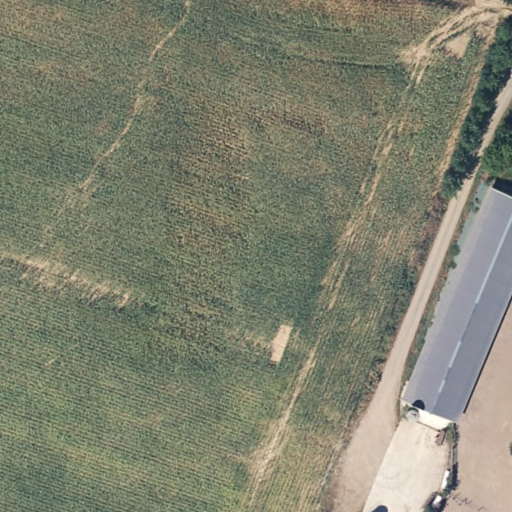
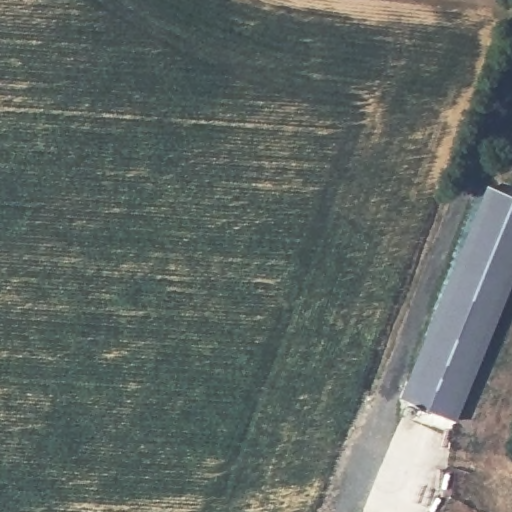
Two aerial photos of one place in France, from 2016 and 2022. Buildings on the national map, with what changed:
unchanged [(512,191),(512,252),(450,418),(409,399),(495,183),(512,191)]

